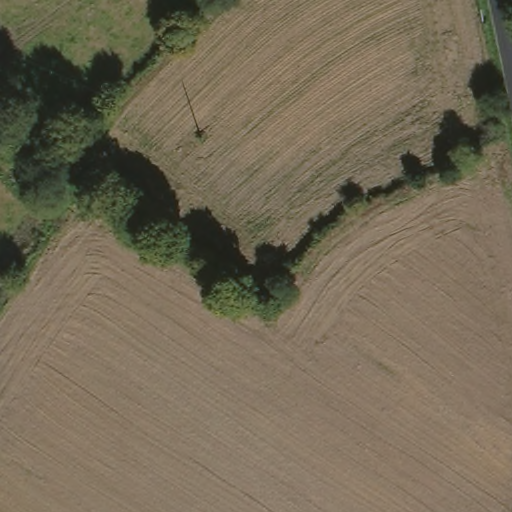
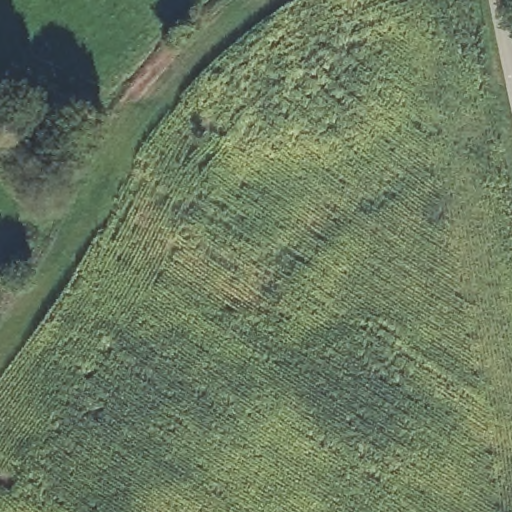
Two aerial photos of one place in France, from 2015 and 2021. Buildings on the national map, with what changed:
[]

